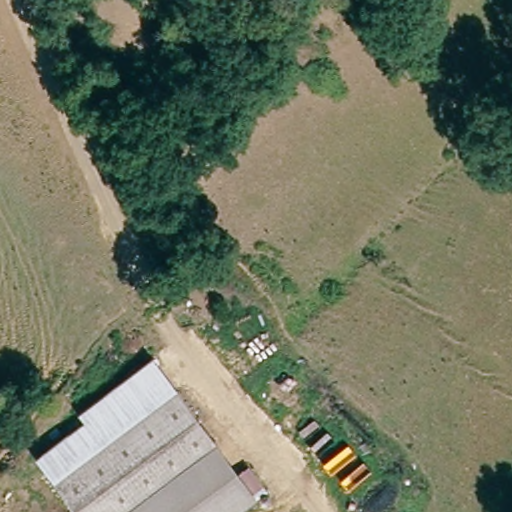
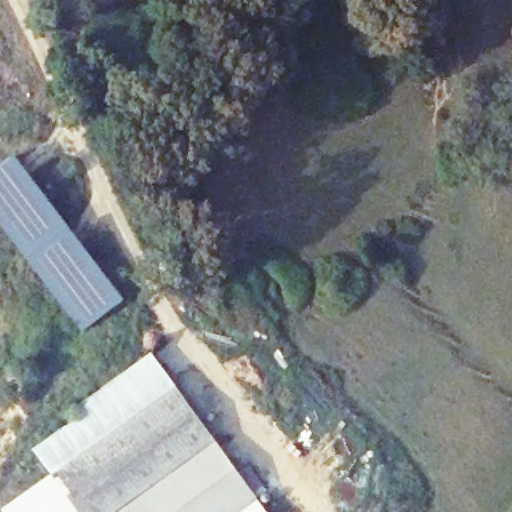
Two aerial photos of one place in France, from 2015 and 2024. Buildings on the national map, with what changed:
new [(0,169),(15,158),(68,228),(125,301),(82,332),(0,223),(0,169)]
unchanged [(34,432),(86,400),(80,389),(155,347),(219,453),(220,456),(227,470),(250,512),(82,512),(66,485),(34,432)]

